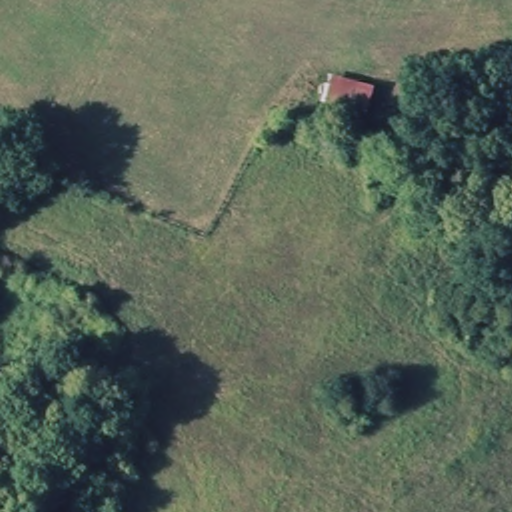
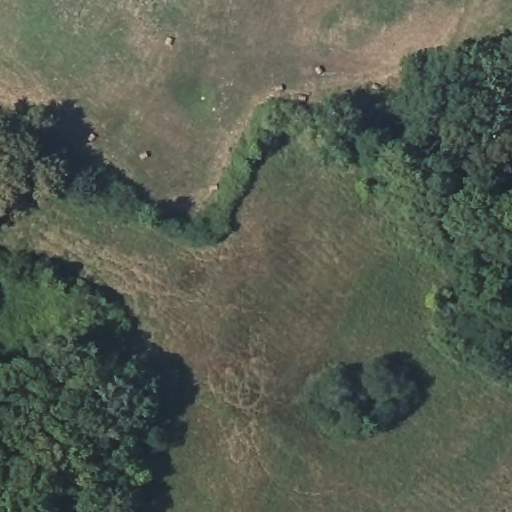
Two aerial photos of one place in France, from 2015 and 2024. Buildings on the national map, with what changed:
unchanged [(360,86),(358,113),(323,108),(328,83),(360,86)]

